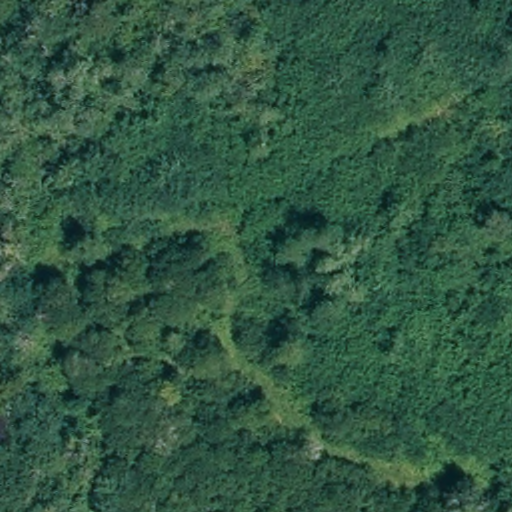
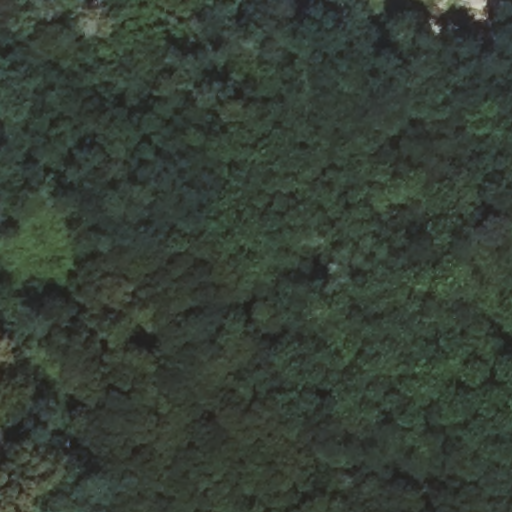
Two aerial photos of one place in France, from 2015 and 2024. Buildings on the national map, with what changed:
[]

